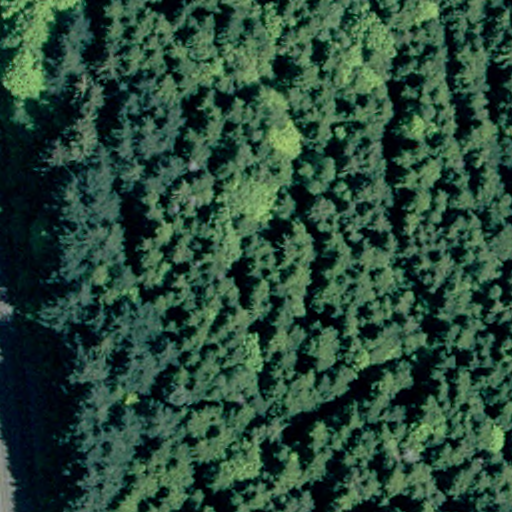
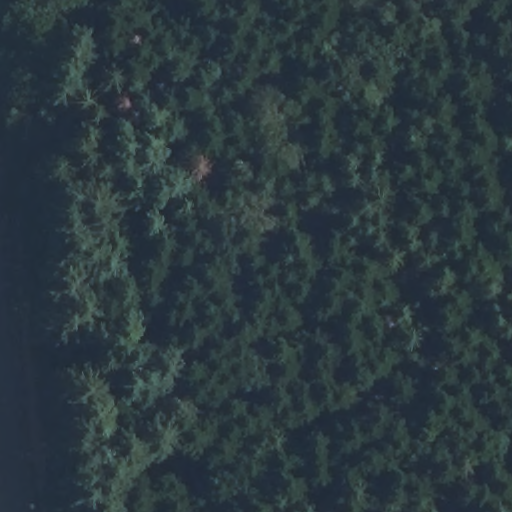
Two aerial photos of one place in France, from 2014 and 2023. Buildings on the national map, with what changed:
[]

